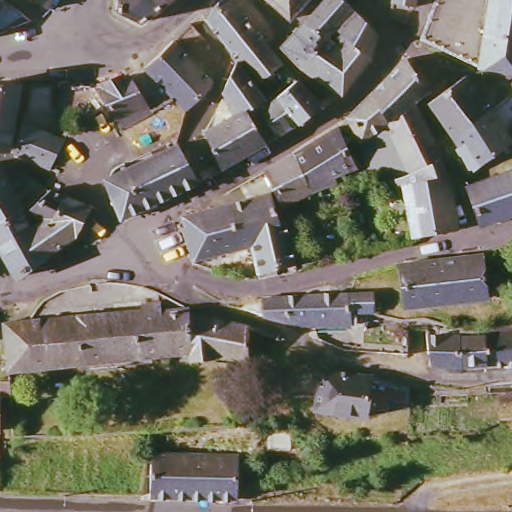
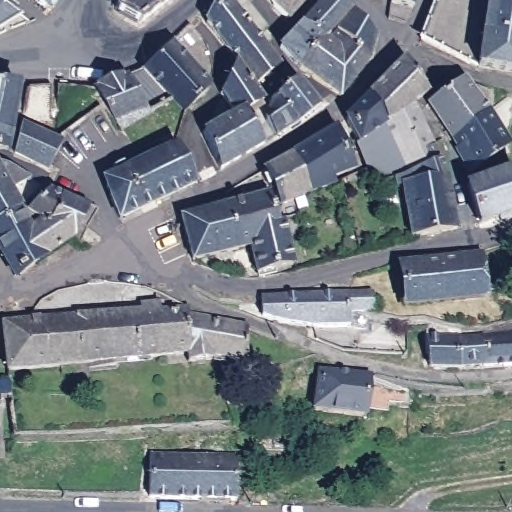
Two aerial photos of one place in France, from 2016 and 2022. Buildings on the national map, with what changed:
unchanged [(47,8),(35,0),(51,0),(47,8)]
unchanged [(134,25),(112,11),(113,0),(167,0),(134,25)]
unchanged [(239,14),(280,64),(256,86),(237,62),(207,23),(227,0),(239,14)]
unchanged [(287,19),(268,0),(304,0),(287,19)]
unchanged [(302,23),(324,0),(341,0),(352,11),(324,43),(302,23)]
unchanged [(408,5),(401,23),(383,18),(386,0),(409,0),(408,5)]
unchanged [(472,67),(417,40),(432,0),(512,0),(512,73),(472,67)]
unchanged [(0,24),(0,3),(16,14),(0,24)]
unchanged [(356,48),(344,60),(326,45),(354,12),(377,35),(368,60),(356,48)]
unchanged [(167,98),(137,69),(167,42),(204,80),(202,88),(181,110),(167,98)]
unchanged [(321,46),(324,43),(326,45),(344,60),(356,48),(368,60),(341,97),(299,68),(300,66),(321,46)]
unchanged [(389,128),(370,96),(405,59),(413,71),(417,69),(431,89),(427,92),(428,94),(412,104),(425,127),(439,159),(416,169),(411,171),(389,128)]
unchanged [(264,99),(246,112),(244,110),(236,115),(221,95),(236,64),(264,99)]
unchanged [(117,129),(105,109),(92,87),(137,69),(167,98),(147,110),(117,129)]
unchanged [(447,135),(428,103),(464,77),(489,111),(447,135)]
unchanged [(275,136),(266,122),(270,104),(296,83),(317,109),(296,123),(275,136)]
unchanged [(2,150),(0,150),(0,88),(12,88),(2,150)]
unchanged [(371,170),(347,121),(370,96),(389,128),(382,133),(389,149),(395,146),(407,173),(377,184),(371,170)]
unchanged [(264,143),(219,170),(204,131),(232,117),(236,115),(244,110),(246,112),(264,143)]
unchanged [(510,142),(470,174),(452,150),(456,148),(447,135),(489,111),(510,142)]
unchanged [(9,155),(17,124),(52,140),(42,169),(9,155)]
unchanged [(312,189),(291,152),(337,125),(356,166),(336,172),(337,178),(312,189)]
unchanged [(174,144),(196,185),(119,219),(108,197),(105,188),(105,177),(125,166),(127,170),(174,144)]
unchanged [(295,196),(281,201),(274,188),(265,168),(291,152),(312,189),(295,196)]
unchanged [(412,238),(403,186),(417,183),(416,169),(439,159),(446,178),(455,230),(417,237),(412,238)]
unchanged [(512,171),(512,214),(477,225),(467,186),(472,184),(482,180),(480,173),(506,163),(507,170),(511,169),(512,171)]
unchanged [(82,229),(90,233),(81,244),(69,238),(64,242),(9,278),(0,263),(0,168),(6,169),(25,182),(4,193),(14,209),(35,188),(42,192),(55,197),(84,208),(92,212),(82,229)]
unchanged [(236,244),(225,200),(269,189),(277,217),(247,222),(252,241),(248,242),(236,244)]
unchanged [(181,212),(225,200),(236,244),(237,247),(191,256),(181,212)]
unchanged [(248,242),(252,241),(247,222),(277,217),(282,215),(284,219),(294,261),(257,271),(248,242)]
unchanged [(484,295),(405,306),(400,265),(480,256),(484,295)]
unchanged [(302,297),(346,295),(372,302),(370,315),(347,314),(346,319),(365,321),(365,330),(343,327),(309,327),(301,326),(302,297)]
unchanged [(279,324),(261,318),(260,302),(260,298),(277,297),(302,297),(301,326),(279,324)]
unchanged [(206,357),(205,359),(182,360),(181,352),(0,371),(0,323),(24,322),(137,313),(137,304),(154,303),(155,312),(182,310),(182,315),(241,327),(241,362),(206,357)]
unchanged [(457,337),(472,337),(482,335),(512,332),(512,365),(484,367),(457,369),(426,368),(423,338),(457,337)]
unchanged [(364,417),(310,413),(317,372),(368,377),(364,417)]
unchanged [(5,396),(0,395),(0,382),(5,383),(5,396)]
unchanged [(146,497),(147,453),(235,454),(234,499),(146,497)]

